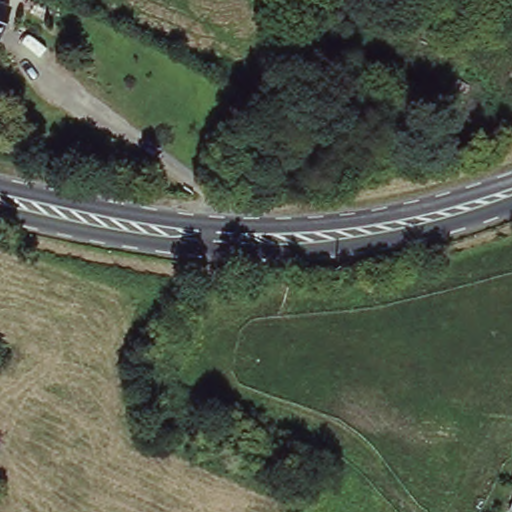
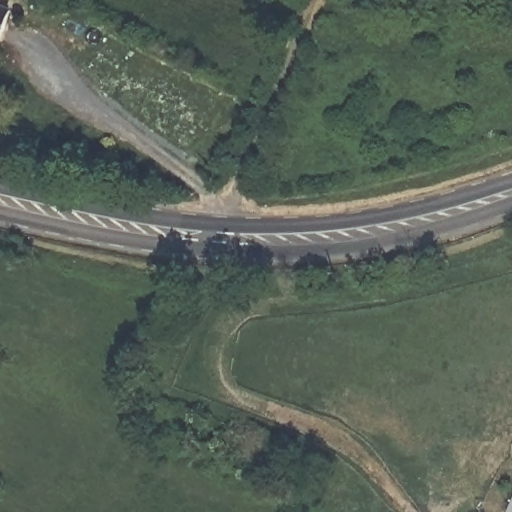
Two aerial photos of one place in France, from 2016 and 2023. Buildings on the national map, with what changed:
unchanged [(12,9),(0,40),(0,5),(12,9)]

